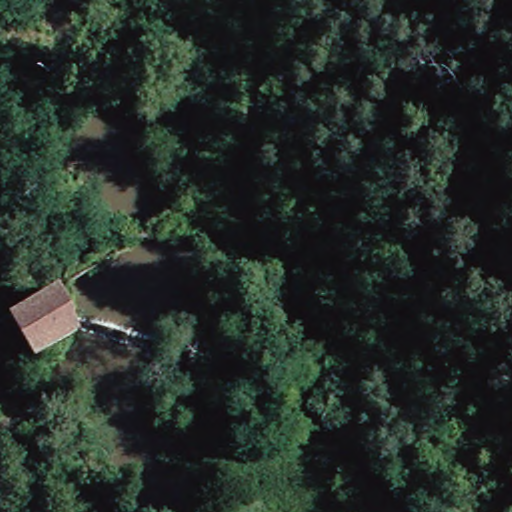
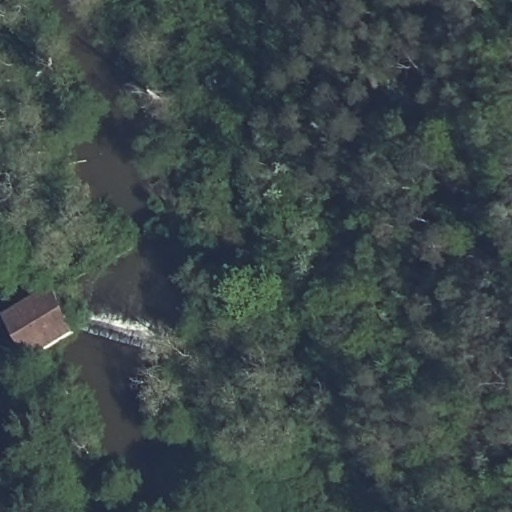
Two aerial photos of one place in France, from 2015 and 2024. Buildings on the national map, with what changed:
unchanged [(66,335),(25,358),(6,319),(50,297),(66,335)]

